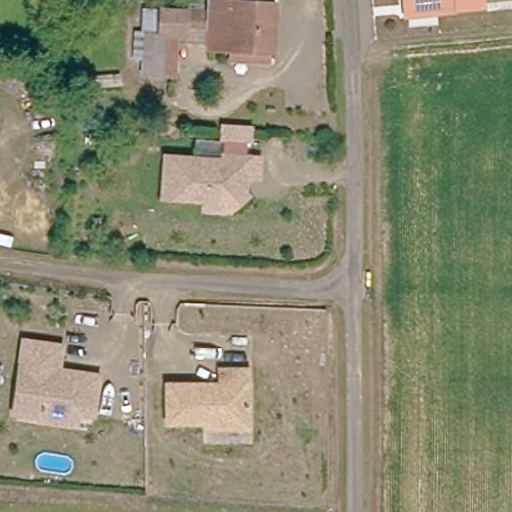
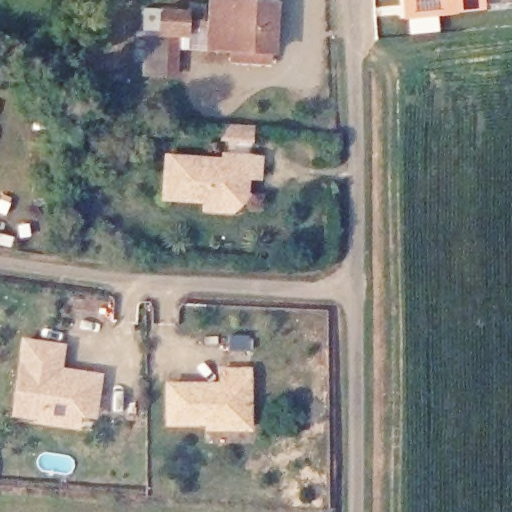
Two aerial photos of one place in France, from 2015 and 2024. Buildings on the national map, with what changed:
unchanged [(229,66),(230,55),(210,54),(211,12),(212,4),(228,5),(228,0),(272,0),(271,57),(267,57),(266,69),(229,66)]
unchanged [(412,20),(410,7),(409,0),(485,0),(486,10),(443,14),(443,17),(412,20)]
unchanged [(149,32),(160,32),(161,10),(206,12),(206,22),(191,21),(190,37),(180,36),(177,79),(160,78),(147,77),(149,32)]
unchanged [(220,157),(221,122),(252,124),(252,143),(246,143),(247,155),(262,156),(262,180),(247,179),(247,195),(252,198),(232,215),(225,212),(200,212),(200,202),(158,201),(161,154),(220,157)]
unchanged [(47,422),(20,417),(31,346),(68,351),(65,375),(73,376),(90,378),(106,381),(100,421),(84,418),(82,431),(46,426),(47,422)]
unchanged [(211,433),(211,428),(172,428),(172,390),(205,390),(205,395),(210,395),(210,397),(220,397),(224,392),(224,375),(252,375),(252,393),(252,408),(252,433),(211,433)]

